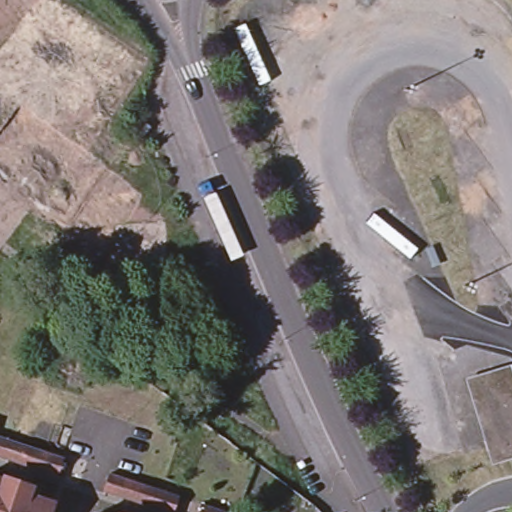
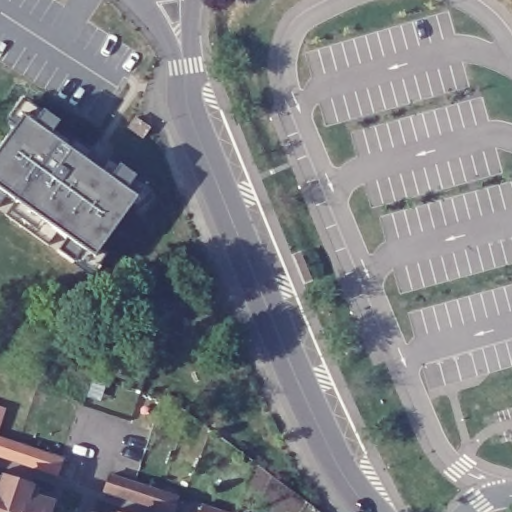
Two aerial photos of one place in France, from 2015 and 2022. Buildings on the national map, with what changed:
new [(133,179),(152,191),(139,210),(132,205),(98,251),(104,255),(92,272),(57,251),(6,214),(16,201),(7,194),(0,204),(0,147),(19,121),(12,117),(25,101),(41,113),(43,110),(58,120),(48,134),(69,148),(74,141),(92,153),(86,161),(110,178),(119,165),(135,176),(133,179)]
unchanged [(512,375),(512,456),(491,462),(464,378),(509,364),(512,375)]
unchanged [(21,461),(0,454),(0,437),(26,445),(61,456),(55,472),(21,461)]
unchanged [(0,507),(0,477),(9,480),(0,507)]
unchanged [(160,512),(135,504),(101,492),(106,477),(140,488),(174,499),(169,512),(160,512)]
unchanged [(0,512),(0,507),(9,480),(22,484),(21,488),(27,490),(25,496),(45,502),(60,506),(58,512),(0,512)]
unchanged [(226,512),(193,512),(196,502),(226,512)]

